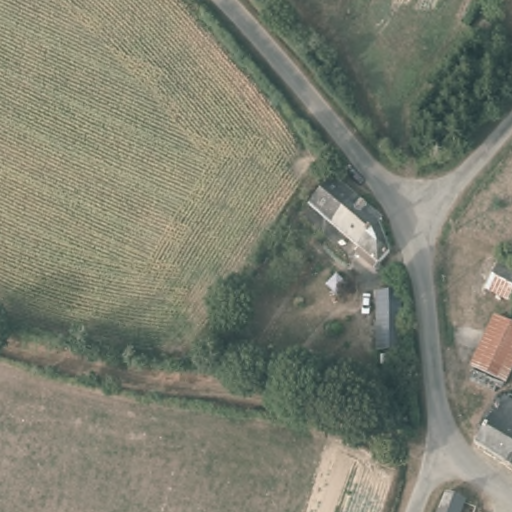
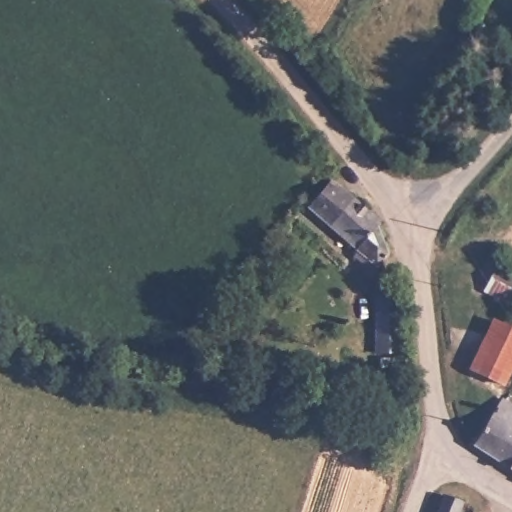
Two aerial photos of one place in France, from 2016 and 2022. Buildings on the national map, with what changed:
unchanged [(394,250),(379,265),(315,211),(335,182),(387,225),(382,230),(394,250)]
unchanged [(489,285),(504,260),(512,264),(512,296),(511,297),(489,285)]
unchanged [(478,368),(501,319),(512,324),(512,358),(502,379),(478,368)]
unchanged [(479,447),(509,397),(512,399),(512,468),(479,447)]
unchanged [(467,506),(465,512),(444,512),(449,497),(467,506)]

